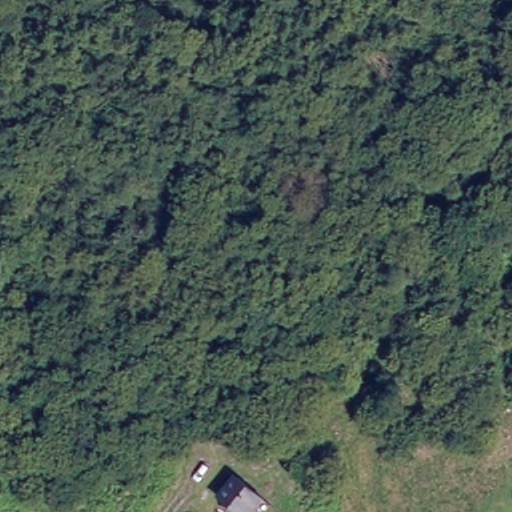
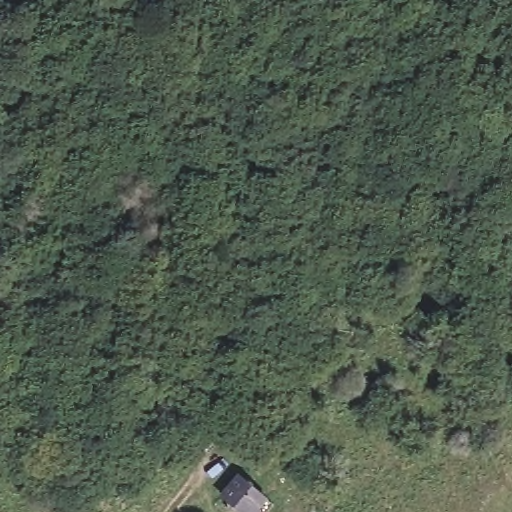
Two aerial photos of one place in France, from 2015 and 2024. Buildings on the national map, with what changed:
unchanged [(262,512),(228,512),(210,500),(232,471),(275,498),(262,512)]

